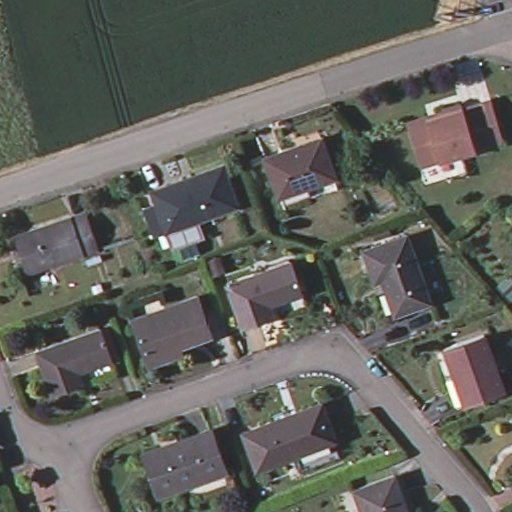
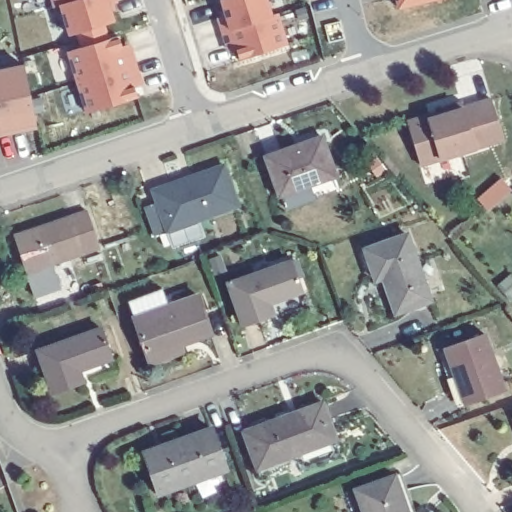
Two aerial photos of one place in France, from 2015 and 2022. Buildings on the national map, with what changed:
new [(118,4),(110,5),(115,23),(105,25),(110,39),(118,36),(120,40),(118,40),(121,48),(131,44),(143,84),(133,87),(137,98),(112,107),(85,115),(67,53),(80,49),(77,34),(67,36),(59,5),(51,8),(50,0),(117,0),(118,4)]
new [(272,16),(279,13),(288,44),(262,53),(239,60),(236,49),(226,53),(217,19),(223,16),(220,1),(223,0),(268,0),(272,16)]
new [(397,10),(395,0),(437,0),(397,10)]
new [(22,65),(34,126),(0,132),(0,70),(22,65)]
unchanged [(500,102),(512,135),(512,141),(430,166),(416,122),(435,116),(457,109),(469,105),(471,111),(500,102)]
unchanged [(335,180),(280,199),(266,161),(322,142),(335,180)]
unchanged [(144,207),(160,201),(157,193),(225,169),(238,208),(170,229),(153,234),(144,207)]
unchanged [(21,241),(78,221),(90,217),(102,251),(91,255),(33,276),(21,241)]
unchanged [(431,307),(397,319),(385,284),(377,287),(367,255),(408,241),(431,307)]
unchanged [(305,287),(271,299),(275,310),(243,322),(228,281),(294,258),(305,287)]
unchanged [(175,346),(178,353),(154,362),(138,317),(201,295),(214,332),(175,346)]
unchanged [(80,374),(85,385),(52,396),(38,355),(101,333),(111,363),(80,374)]
unchanged [(505,395),(465,409),(445,352),(485,338),(505,395)]
unchanged [(260,469),(247,432),(326,404),(340,441),(260,469)]
unchanged [(158,492),(147,454),(216,434),(227,471),(158,492)]
unchanged [(395,482),(405,512),(362,512),(356,496),(395,482)]

